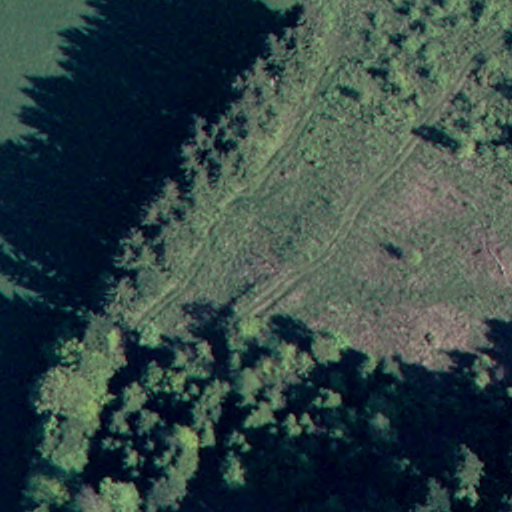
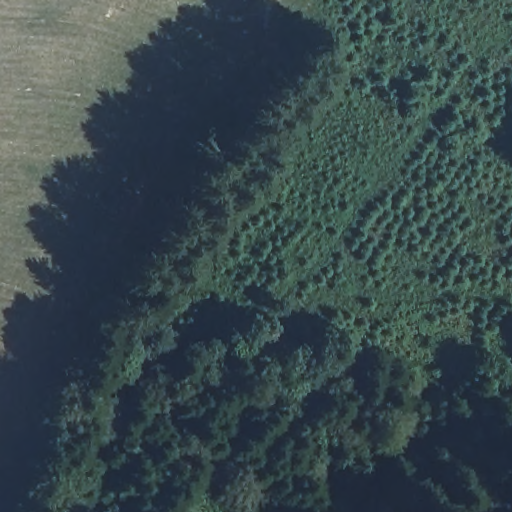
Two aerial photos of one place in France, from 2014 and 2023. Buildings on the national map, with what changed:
[]

